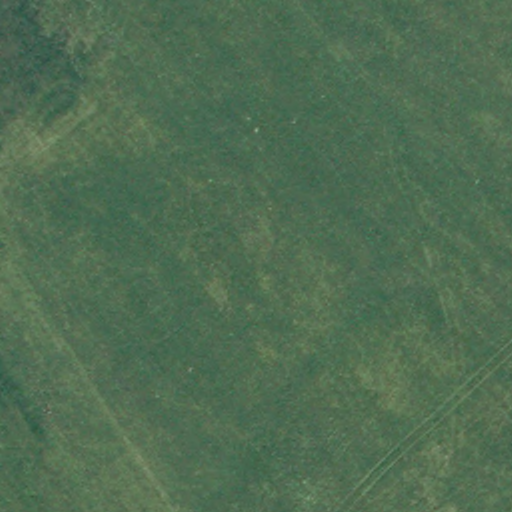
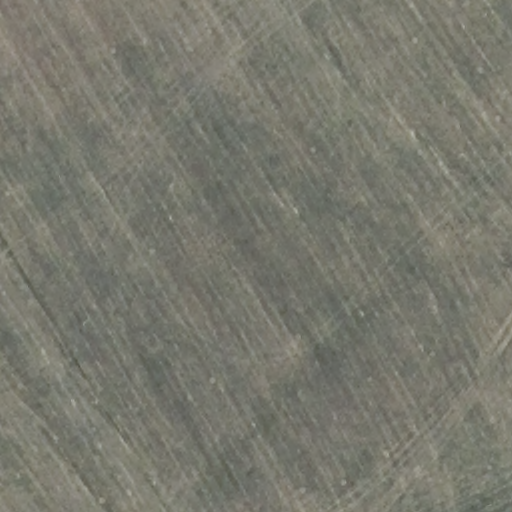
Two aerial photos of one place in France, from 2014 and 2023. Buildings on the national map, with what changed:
[]

